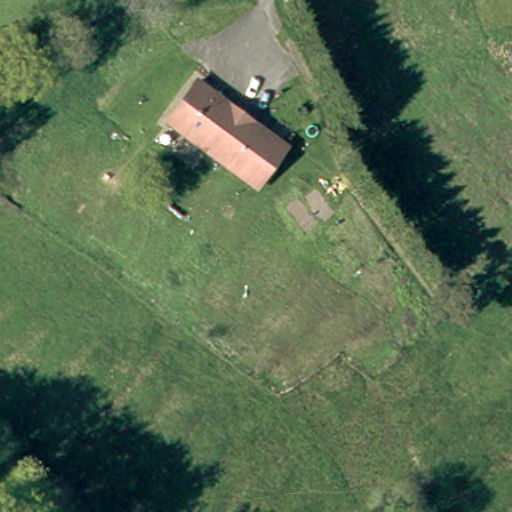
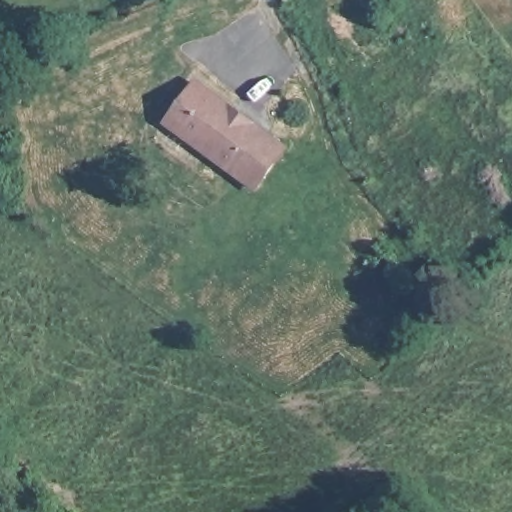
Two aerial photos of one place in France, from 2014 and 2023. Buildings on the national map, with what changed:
unchanged [(268,135),(283,145),(252,185),(161,121),(187,79),(198,87),(220,102),(248,120),(268,135)]

